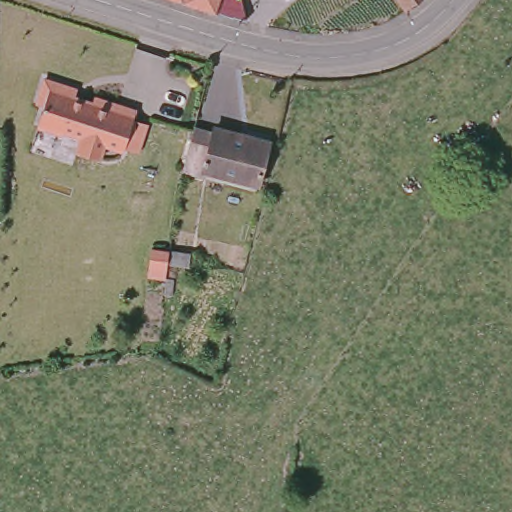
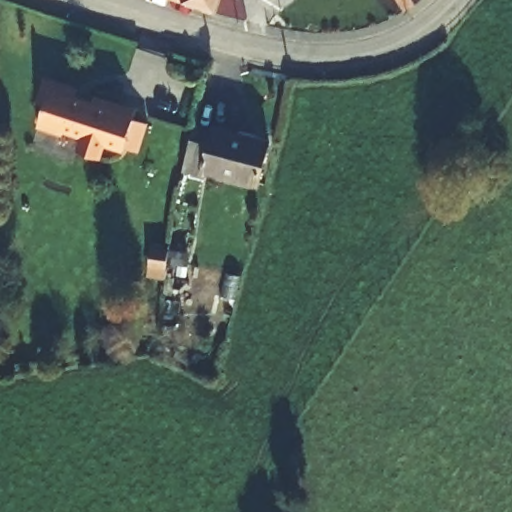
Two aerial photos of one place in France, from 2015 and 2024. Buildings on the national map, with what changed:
unchanged [(238,10),(235,18),(234,21),(172,0),(238,0),(241,11),(238,10)]
unchanged [(397,0),(422,0),(405,11),(397,0)]
unchanged [(94,99),(117,105),(101,160),(87,157),(70,154),(74,136),(32,126),(45,85),(94,99)]
unchanged [(117,105),(152,120),(141,154),(106,143),(117,105)]
unchanged [(209,171),(207,179),(187,175),(197,127),(217,133),(218,126),(273,140),(262,186),(209,171)]
unchanged [(183,256),(180,270),(167,266),(170,252),(183,256)]

